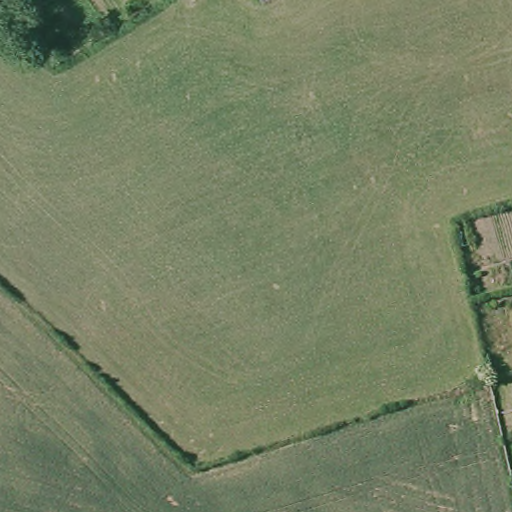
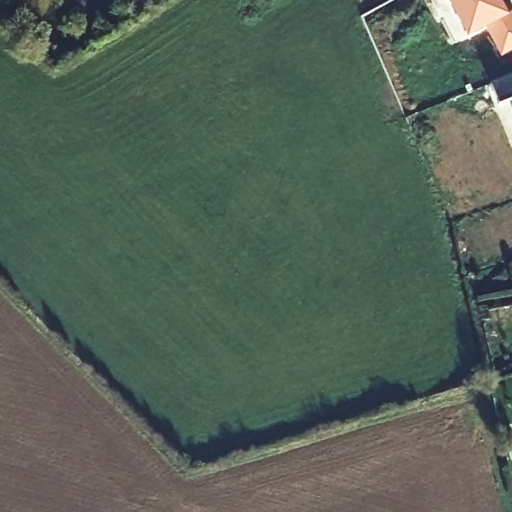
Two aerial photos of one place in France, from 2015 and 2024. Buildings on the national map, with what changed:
new [(467,41),(444,0),(498,0),(507,17),(512,14),(512,52),(502,58),(484,31),(467,41)]
new [(498,106),(491,85),(512,77),(512,101),(498,106)]

